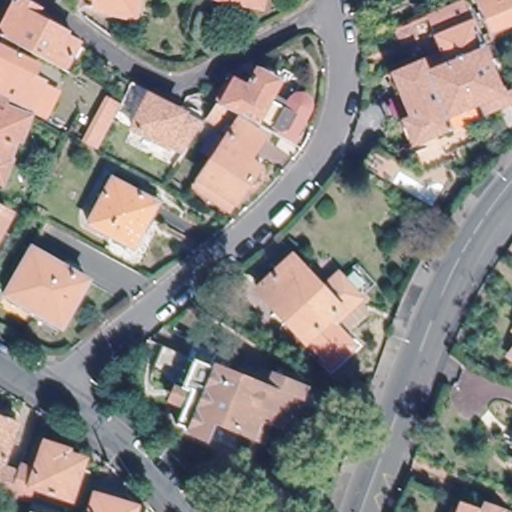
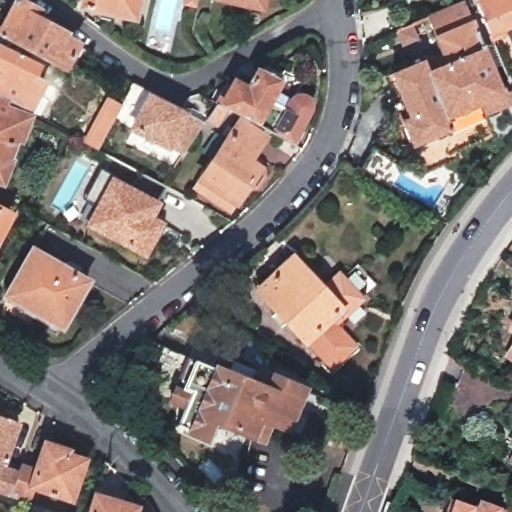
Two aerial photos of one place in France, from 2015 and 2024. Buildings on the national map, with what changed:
unchanged [(19,0),(34,0),(44,5),(40,13),(73,29),(71,32),(90,44),(83,56),(75,53),(69,65),(4,30),(19,0)]
unchanged [(83,2),(83,0),(137,0),(132,21),(106,15),(107,8),(83,2)]
unchanged [(219,3),(219,0),(266,0),(263,14),(219,3)]
unchanged [(492,39),(476,0),(512,0),(512,31),(492,39)]
unchanged [(446,57),(432,20),(469,5),(484,42),(446,57)]
unchanged [(415,33),(403,38),(396,24),(409,18),(415,33)]
unchanged [(41,61),(36,71),(46,78),(31,107),(16,100),(0,91),(0,50),(4,42),(41,61)]
unchanged [(446,57),(484,42),(489,55),(496,71),(505,68),(512,85),(512,109),(490,119),(486,108),(450,121),(455,133),(416,149),(406,125),(414,121),(397,76),(427,65),(446,57)]
unchanged [(201,125),(215,104),(220,93),(226,96),(233,83),(245,89),(256,69),(295,88),(291,95),(300,95),(307,99),(309,105),(290,143),(231,112),(227,119),(222,115),(216,124),(211,132),(200,125),(182,154),(131,127),(147,96),(201,125)]
unchanged [(31,114),(21,139),(16,136),(9,156),(11,158),(3,178),(0,177),(0,91),(16,100),(14,106),(31,114)]
unchanged [(84,138),(109,91),(121,98),(95,144),(84,138)]
unchanged [(195,184),(200,177),(226,139),(219,134),(227,124),(233,128),(238,120),(262,136),(246,161),(260,170),(260,175),(257,180),(247,182),(234,201),(230,207),(195,184)]
unchanged [(371,141),(402,159),(389,181),(386,186),(355,169),(371,141)]
unchanged [(161,204),(136,247),(94,221),(119,179),(161,204)]
unchanged [(0,202),(12,208),(0,233),(0,202)]
unchanged [(90,279),(65,326),(11,296),(34,251),(90,279)]
unchanged [(313,331),(305,337),(259,288),(292,258),(308,277),(319,289),(338,271),(363,299),(358,303),(319,337),(313,331)]
unchanged [(199,309),(194,314),(185,308),(189,302),(199,309)]
unchanged [(260,390),(267,375),(312,396),(296,435),(280,429),(273,445),(223,425),(215,443),(186,431),(200,398),(163,373),(172,352),(260,390)]
unchanged [(0,466),(0,416),(4,417),(6,415),(10,411),(16,411),(21,413),(25,416),(26,423),(8,467),(23,473),(25,467),(43,473),(50,445),(71,451),(71,454),(89,460),(78,497),(39,486),(33,503),(13,497),(0,494),(0,487),(7,469),(0,466)]
unchanged [(486,512),(487,512),(458,512),(463,499),(470,502),(487,507),(486,512)]
unchanged [(101,502),(136,512),(98,512),(101,502)]
unchanged [(493,505),(512,511),(512,512),(490,512),(493,505)]

